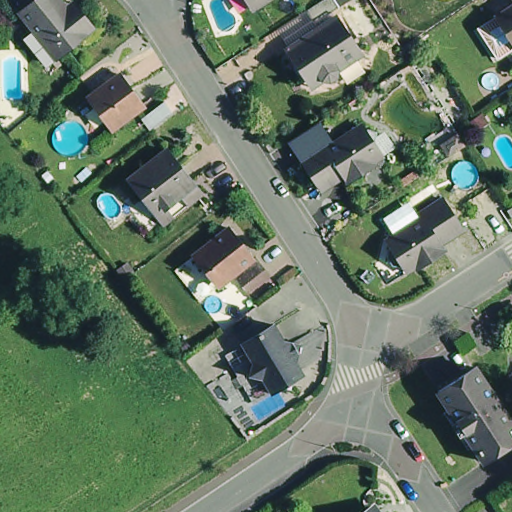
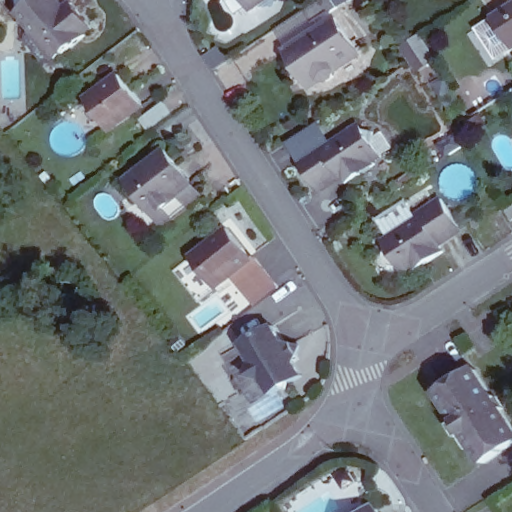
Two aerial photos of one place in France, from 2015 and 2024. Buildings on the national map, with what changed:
unchanged [(27,31),(34,24),(20,6),(28,0),(63,0),(65,3),(68,0),(76,0),(80,5),(94,22),(87,28),(87,31),(62,50),(49,60),(27,31)]
unchanged [(512,3),(512,43),(492,15),(512,3)]
unchanged [(299,72),(282,49),(332,16),(355,53),(331,67),(331,76),(320,78),(308,84),(299,72)]
unchanged [(117,79),(142,109),(109,134),(86,103),(117,79)]
unchanged [(321,142),(324,145),(352,127),(369,130),(369,138),(379,152),(371,159),(373,162),(348,179),(340,170),(317,182),(299,158),(321,142)]
unchanged [(164,221),(156,212),(127,178),(165,148),(195,181),(203,190),(191,200),(183,192),(164,208),(171,216),(164,221)]
unchanged [(420,217),(419,212),(441,196),(462,222),(441,239),(449,249),(426,265),(422,263),(413,270),(402,258),(391,256),(394,235),(420,217)]
unchanged [(236,283),(225,269),(214,278),(190,249),(220,224),(247,252),(259,265),(236,283)]
unchanged [(275,320),(289,340),(305,338),(294,351),(306,367),(272,388),(262,370),(248,369),(252,355),(241,340),(275,320)]
unchanged [(471,369),(490,397),(492,394),(512,424),(512,442),(485,459),(464,432),(459,435),(450,422),(455,419),(436,390),(471,369)]
unchanged [(384,512),(367,512),(379,505),(384,512)]

